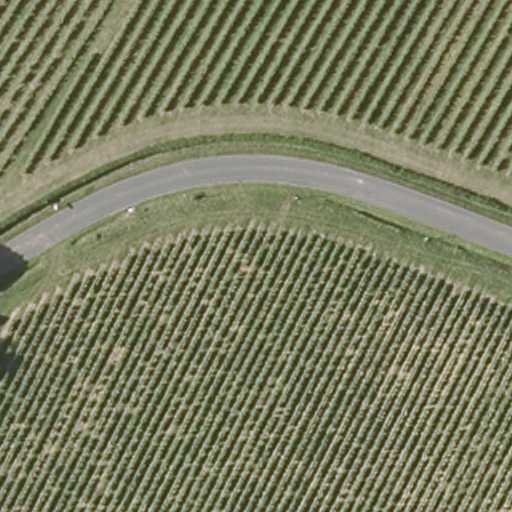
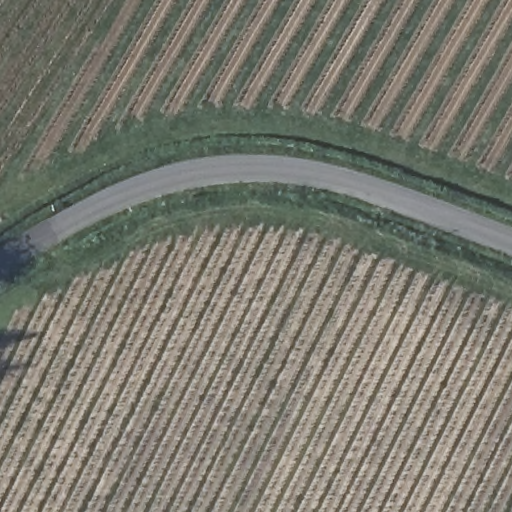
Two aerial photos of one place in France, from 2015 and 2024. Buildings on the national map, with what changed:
[]

